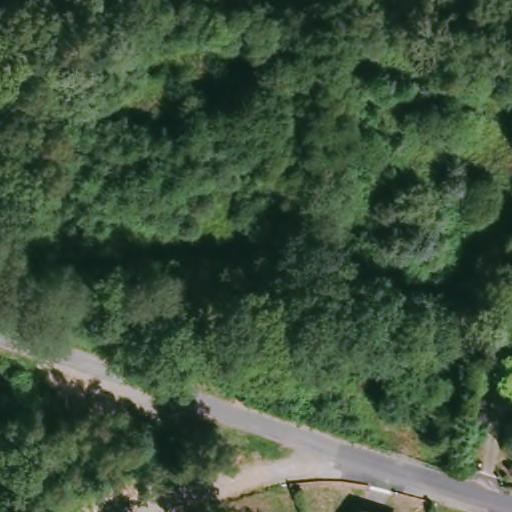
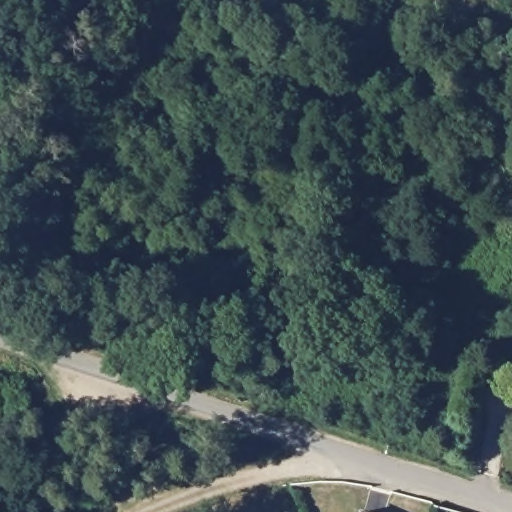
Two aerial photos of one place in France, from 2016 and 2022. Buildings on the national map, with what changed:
unchanged [(368,512),(368,510),(372,512),(368,512)]

